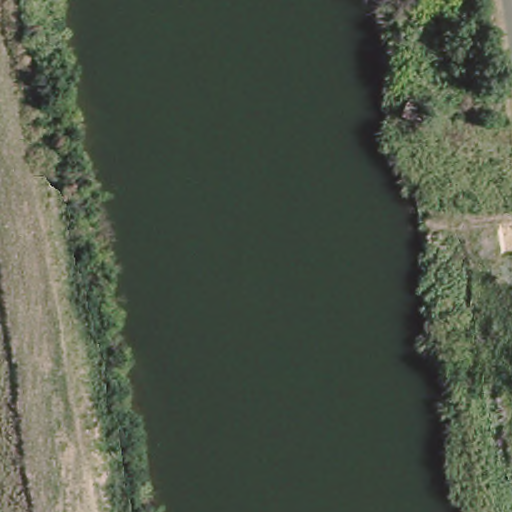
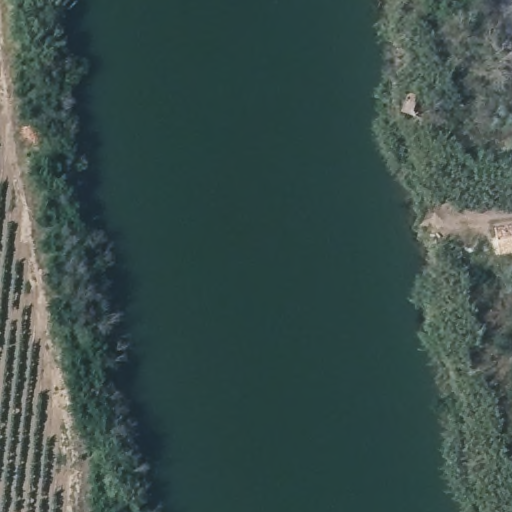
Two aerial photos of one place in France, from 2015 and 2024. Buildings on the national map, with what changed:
unchanged [(428,101),(421,118),(404,112),(410,95),(428,101)]
unchanged [(497,233),(512,230),(512,253),(501,255),(497,233)]

